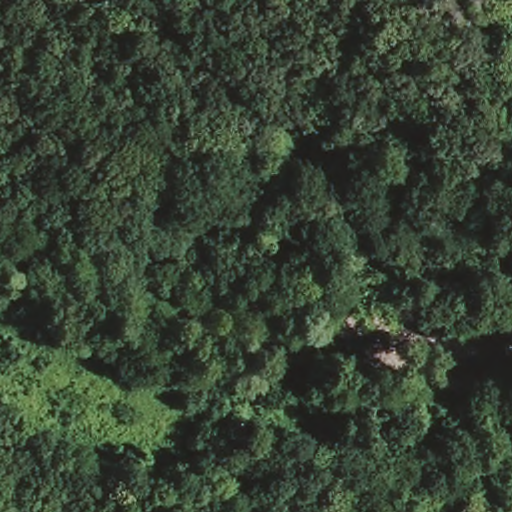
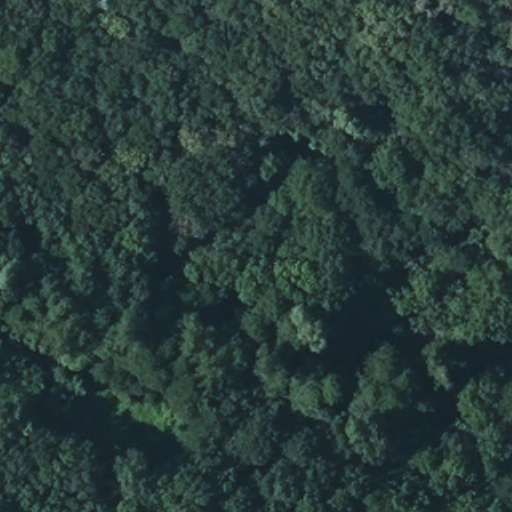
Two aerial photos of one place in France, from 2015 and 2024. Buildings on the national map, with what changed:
unchanged [(180,451),(183,440),(195,445),(190,457),(180,451)]

